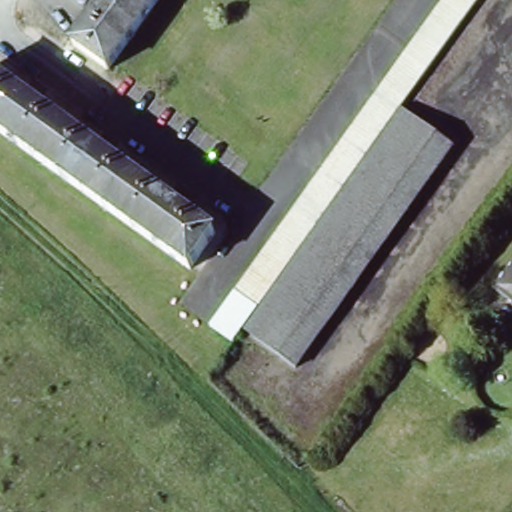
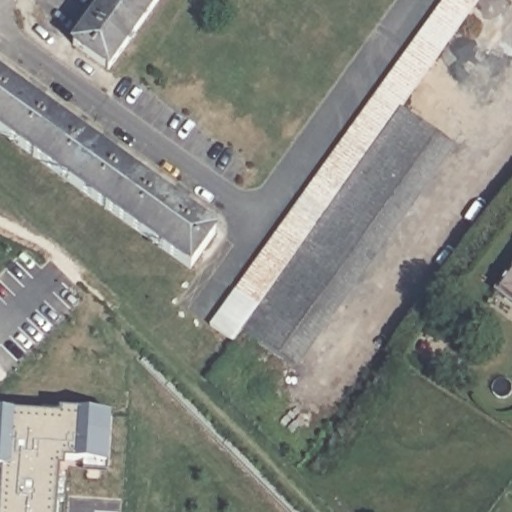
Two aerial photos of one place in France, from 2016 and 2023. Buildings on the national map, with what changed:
unchanged [(115,62),(78,37),(103,0),(159,0),(115,62)]
unchanged [(281,227),(444,0),(480,0),(403,109),(244,328),(237,338),(213,323),(281,227)]
unchanged [(188,268),(0,129),(0,78),(216,230),(188,268)]
unchanged [(299,365),(244,328),(403,109),(456,147),(299,365)]
unchanged [(512,265),(512,302),(494,290),(512,265)]
new [(58,418),(58,413),(110,416),(107,467),(65,465),(65,472),(59,472),(57,512),(0,512),(0,488),(1,472),(0,472),(0,415),(58,418)]

